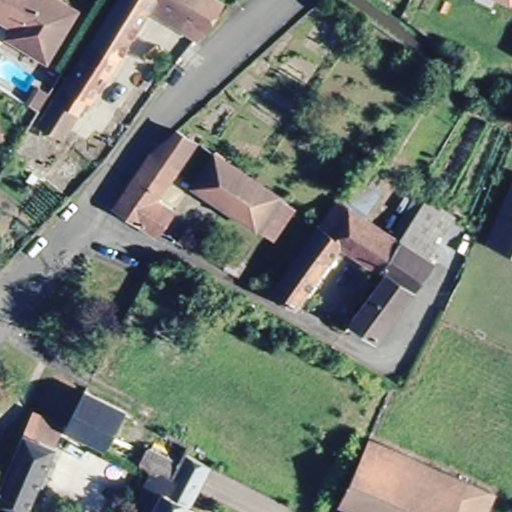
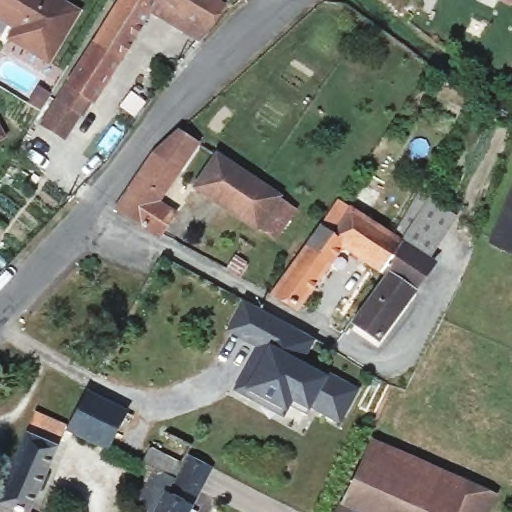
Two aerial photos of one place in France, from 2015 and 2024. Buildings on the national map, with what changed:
unchanged [(79,11),(49,61),(10,36),(17,26),(0,15),(0,0),(61,0),(79,11)]
unchanged [(202,32),(198,36),(147,7),(116,57),(90,41),(115,0),(221,0),(223,1),(205,27),(197,23),(194,27),(202,32)]
unchanged [(502,9),(485,1),(486,0),(505,0),(502,9)]
unchanged [(75,112),(66,127),(60,135),(39,122),(64,84),(90,41),(116,57),(89,100),(78,93),(68,107),(75,112)]
unchanged [(52,93),(42,109),(31,103),(41,87),(52,93)]
unchanged [(108,209),(163,127),(182,140),(165,169),(169,171),(147,208),(163,217),(152,235),(132,223),(108,209)]
unchanged [(277,241),(257,227),(254,232),(192,190),(215,155),(277,196),(298,210),(277,241)]
unchanged [(404,239),(394,232),(419,193),(459,218),(434,258),(404,239)]
unchanged [(492,241),(512,195),(512,250),(507,248),(492,241)]
unchanged [(404,239),(381,272),(345,249),(302,307),(273,290),(322,223),(325,219),(339,227),(353,207),(394,232),(404,239)]
unchanged [(434,258),(412,292),(387,276),(381,272),(404,239),(434,258)]
unchanged [(231,253),(250,263),(243,276),(224,267),(231,253)]
unchanged [(412,292),(381,340),(356,325),(387,276),(412,292)]
new [(245,302),(293,328),(286,340),(304,350),(296,364),(321,377),(322,374),(354,391),(338,420),(311,406),(305,416),(266,394),(262,401),(237,387),(260,346),(230,330),(245,302)]
unchanged [(82,393),(122,413),(105,450),(96,445),(68,432),(28,512),(15,512),(0,506),(0,481),(38,403),(70,419),(82,393)]
unchanged [(459,481),(487,496),(481,512),(333,512),(365,440),(459,481)]
unchanged [(154,475),(139,467),(149,450),(182,466),(188,453),(212,465),(197,494),(192,503),(188,512),(144,512),(137,508),(154,475)]

